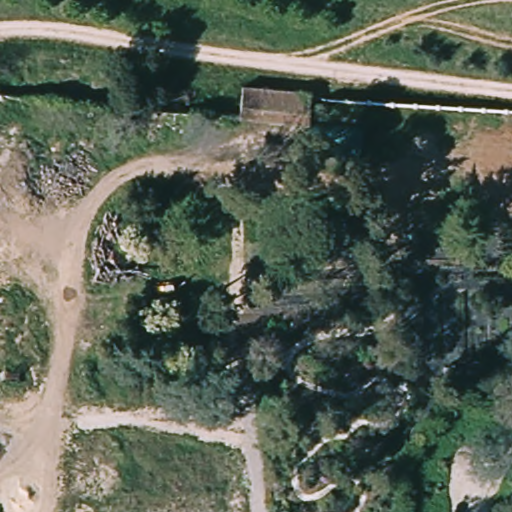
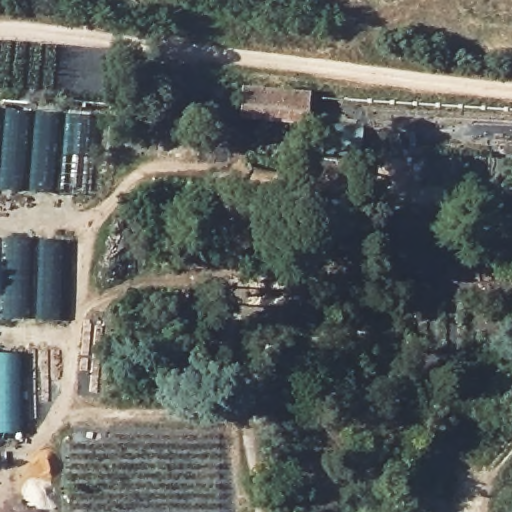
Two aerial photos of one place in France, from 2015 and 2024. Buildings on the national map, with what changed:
unchanged [(240,84),(308,84),(308,99),(306,116),(238,112),(240,84)]
new [(85,196),(0,189),(0,108),(92,115),(85,196)]
new [(66,240),(63,322),(3,318),(6,238),(66,240)]
new [(22,436),(0,435),(0,353),(22,354),(22,436)]

